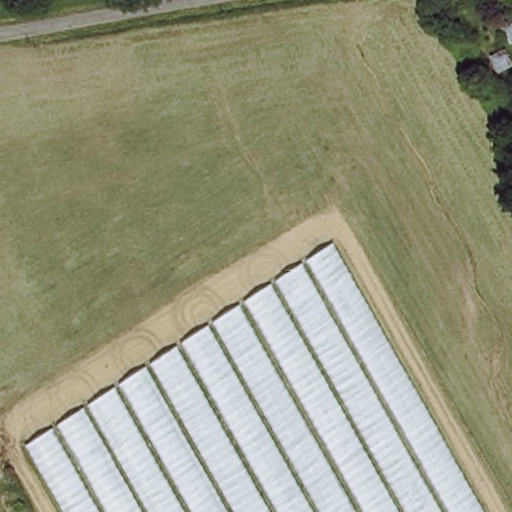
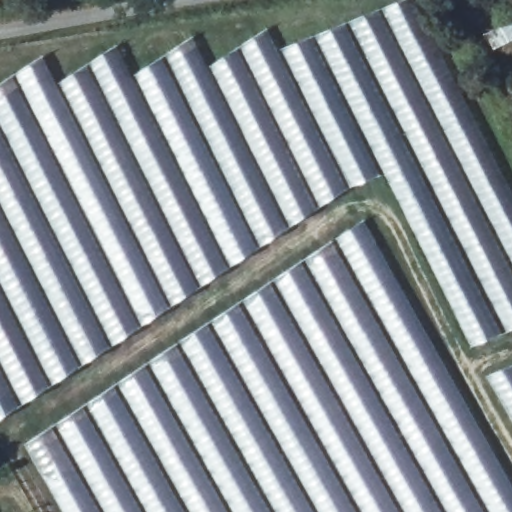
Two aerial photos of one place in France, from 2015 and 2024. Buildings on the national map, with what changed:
new [(36,53),(54,84),(116,45),(135,73),(192,36),(208,61),(265,28),(281,51),(391,0),(403,0),(512,199),(512,337),(477,355),(378,178),(0,419),(0,77),(36,53)]
new [(512,486),(512,512),(61,512),(25,446),(364,222),(512,486)]
new [(487,377),(512,366),(512,420),(487,377)]

